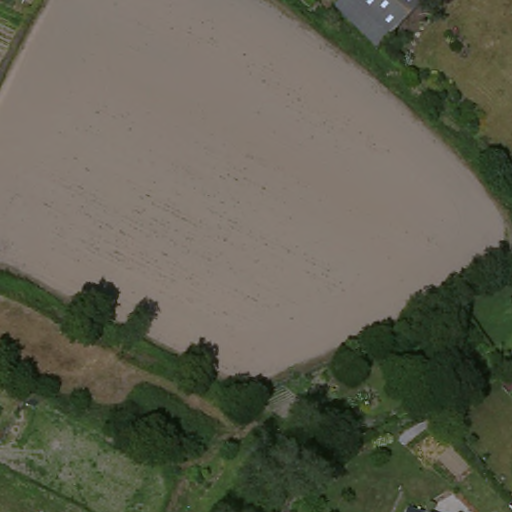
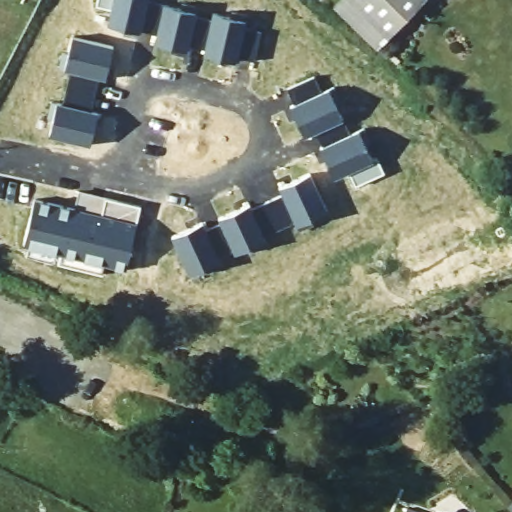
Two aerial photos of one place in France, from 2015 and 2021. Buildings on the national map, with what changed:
new [(97,0),(148,0),(148,1),(181,10),(182,4),(198,8),(195,18),(212,21),(213,15),(230,19),(231,14),(247,18),(244,30),(261,35),(254,63),(237,59),(236,64),(203,55),(204,50),(188,46),(187,51),(154,43),(157,34),(141,30),(139,32),(107,24),(111,9),(96,5),(97,0)]
unchanged [(425,5),(372,55),(328,14),(341,0),(420,0),(425,5)]
new [(53,104),(64,106),(72,73),(60,70),(64,54),(69,56),(73,38),(114,48),(107,80),(101,79),(93,113),(99,115),(91,146),(49,137),(54,120),(49,119),(53,104)]
new [(314,78),(322,95),(334,89),(341,103),(336,106),(351,137),(364,130),(371,145),(366,147),(373,161),(378,159),(384,175),(356,188),(349,174),(334,180),(321,150),(323,149),(316,134),(305,139),(291,109),(294,107),(287,91),(314,78)]
new [(203,224),(206,231),(222,224),(219,219),(249,205),(252,210),(284,195),(280,188),(311,174),(329,212),(313,220),(315,225),(301,232),(297,222),(265,237),(269,246),(254,252),(252,248),(236,255),(234,251),(219,258),(223,267),(208,274),(206,269),(189,276),(173,237),(203,224)]
new [(24,243),(37,200),(76,211),(81,194),(107,201),(143,211),(124,271),(104,265),(102,276),(58,263),(61,253),(55,251),(53,261),(27,254),(29,244),(24,243)]
unchanged [(510,491),(512,490),(512,494),(510,491)]
unchanged [(419,512),(403,512),(405,503),(421,507),(419,512)]
unchanged [(439,512),(427,512),(428,509),(439,512)]

